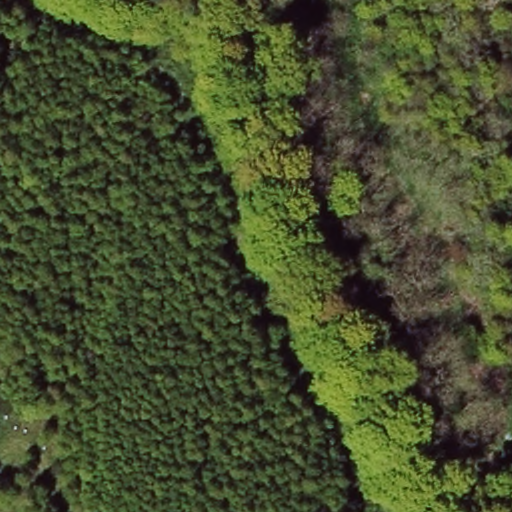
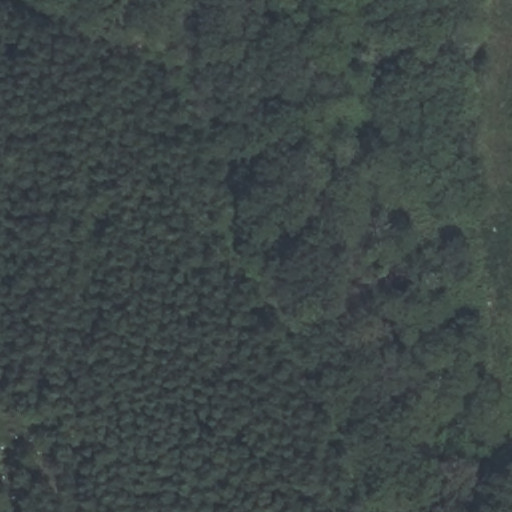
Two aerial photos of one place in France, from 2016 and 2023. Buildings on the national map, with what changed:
[]

